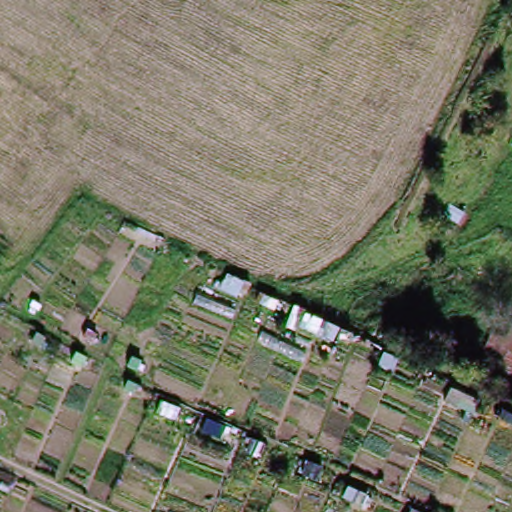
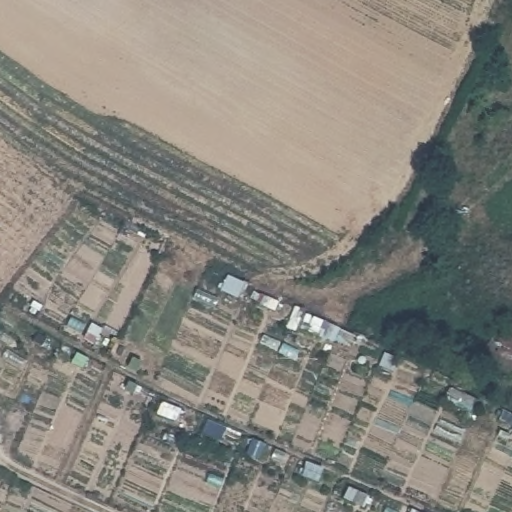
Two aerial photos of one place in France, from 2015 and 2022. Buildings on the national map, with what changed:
unchanged [(483,356),(493,333),(507,339),(512,328),(512,368),(483,356)]

